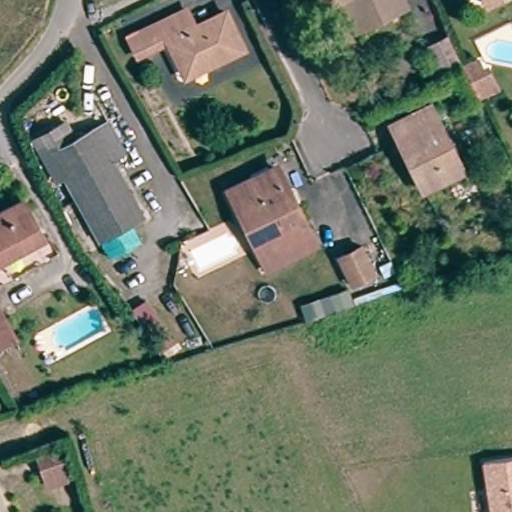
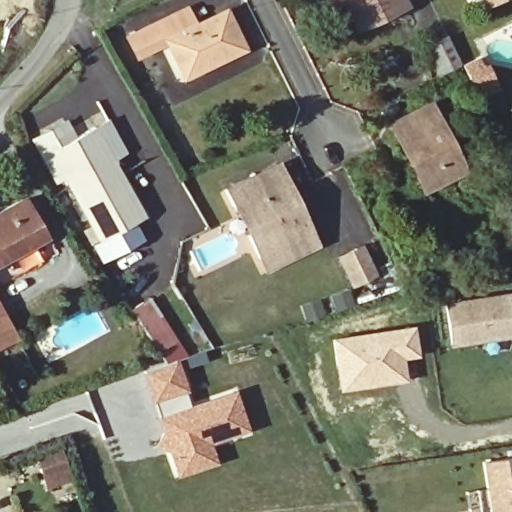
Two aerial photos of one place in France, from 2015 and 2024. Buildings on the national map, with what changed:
unchanged [(362,0),(409,0),(372,20),(362,0)]
new [(482,0),(505,0),(486,9),(482,0)]
unchanged [(192,17),(202,38),(233,22),(247,52),(220,65),(218,61),(178,82),(165,55),(143,66),(134,46),(192,17)]
unchanged [(454,70),(440,78),(430,56),(444,49),(454,70)]
unchanged [(487,103),(484,97),(473,76),(487,69),(492,79),(496,76),(502,88),(504,94),(487,103)]
unchanged [(460,170),(427,187),(411,155),(405,158),(391,129),(431,109),(460,170)]
unchanged [(53,150),(80,137),(99,129),(118,120),(132,153),(113,161),(134,214),(88,235),(64,176),(53,150)]
unchanged [(52,182),(35,141),(75,124),(80,137),(53,150),(64,176),(52,182)]
unchanged [(262,268),(258,259),(247,238),(255,235),(233,188),(272,168),(290,205),(298,202),(312,231),(316,241),(262,268)]
unchanged [(47,231),(0,254),(0,209),(31,194),(47,231)]
new [(131,215),(140,240),(105,255),(95,232),(131,215)]
unchanged [(373,270),(350,281),(338,256),(361,245),(373,270)]
new [(445,302),(511,295),(512,298),(512,340),(450,350),(445,302)]
unchanged [(0,340),(0,297),(16,332),(0,340)]
new [(177,340),(182,348),(166,360),(161,353),(131,312),(148,301),(177,340)]
new [(414,325),(420,357),(404,360),(407,381),(339,391),(331,337),(414,325)]
new [(189,393),(186,393),(190,406),(236,390),(249,431),(212,445),(217,465),(178,476),(171,455),(154,446),(162,430),(159,418),(161,417),(156,401),(153,402),(142,371),(176,360),(189,393)]
unchanged [(44,488),(34,458),(61,445),(72,481),(44,488)]
unchanged [(484,462),(512,458),(512,512),(492,512),(484,462)]

